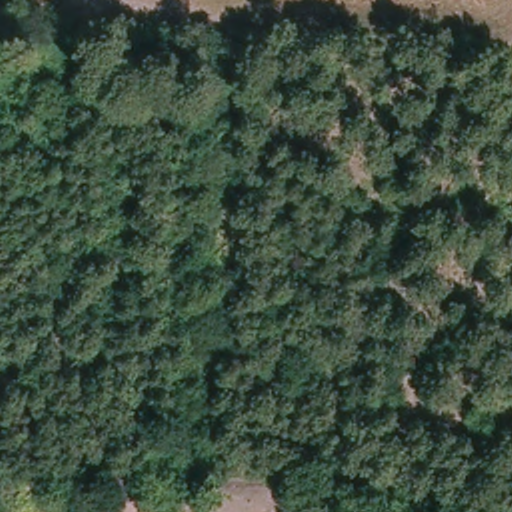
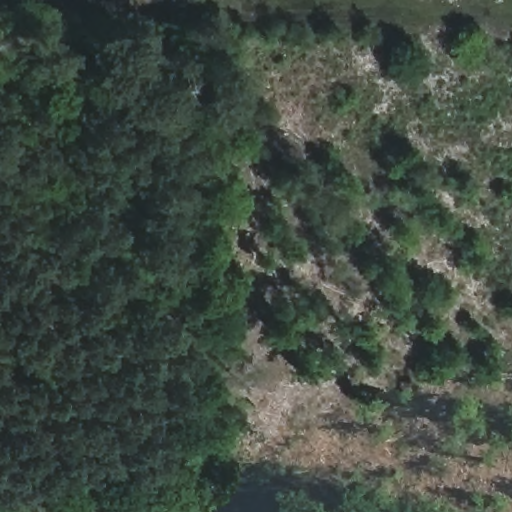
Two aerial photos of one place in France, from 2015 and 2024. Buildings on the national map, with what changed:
[]

